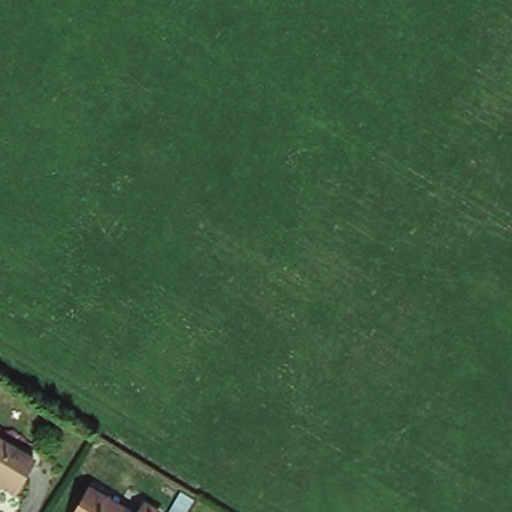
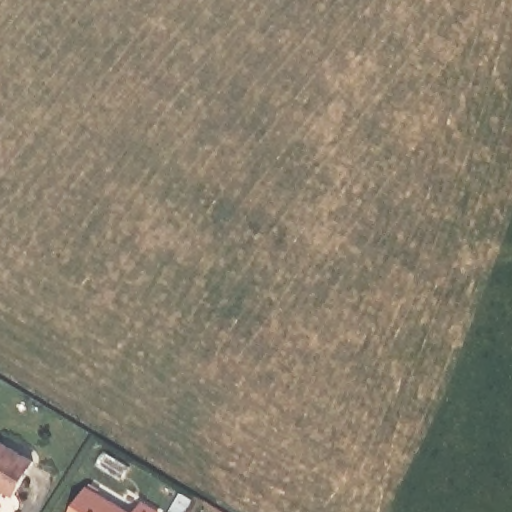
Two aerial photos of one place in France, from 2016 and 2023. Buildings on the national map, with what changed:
unchanged [(12,497),(0,490),(0,448),(33,465),(12,497)]
unchanged [(88,490),(125,512),(74,512),(88,490)]
unchanged [(138,501),(153,510),(152,512),(131,512),(138,501)]

